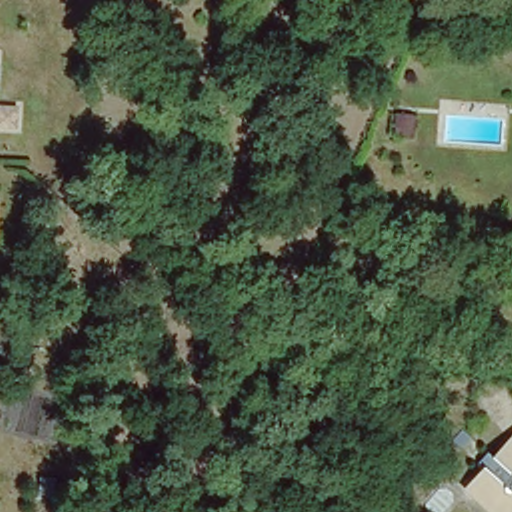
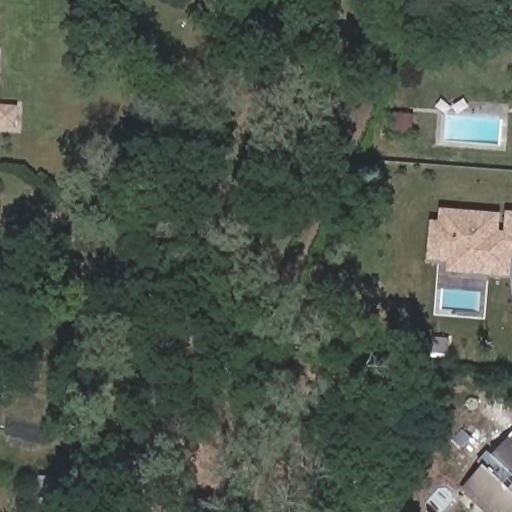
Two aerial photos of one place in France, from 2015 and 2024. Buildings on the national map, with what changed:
unchanged [(416,111),(415,135),(398,133),(400,110),(416,111)]
new [(512,213),(512,269),(511,276),(448,272),(448,263),(427,261),(431,222),(438,223),(440,209),(501,214),(498,231),(504,232),(506,212),(512,213)]
unchanged [(478,502),(464,489),(469,484),(482,471),(478,467),(486,459),(490,462),(507,444),(512,439),(512,512),(489,512),(478,502)]

